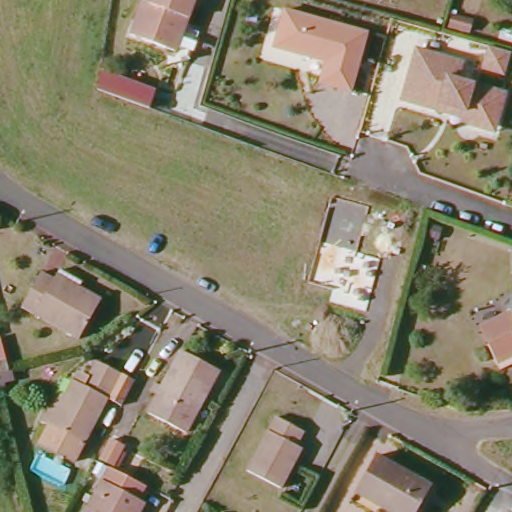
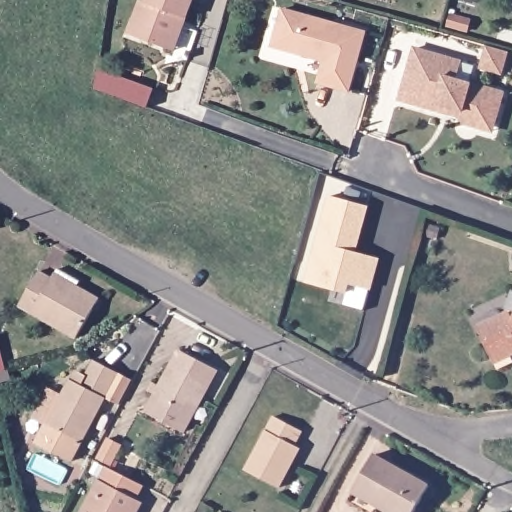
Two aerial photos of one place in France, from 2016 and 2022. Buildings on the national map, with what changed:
unchanged [(166,49),(130,36),(142,0),(146,0),(147,1),(148,0),(195,0),(188,19),(177,52),(166,49)]
unchanged [(273,46),(285,10),(365,34),(348,94),(318,83),(325,62),(273,46)]
unchanged [(476,124),(460,119),(461,115),(435,107),(400,96),(416,45),(462,60),(458,76),(504,90),(494,124),(492,130),(476,124)]
unchanged [(508,51),(502,72),(482,67),(487,45),(508,51)]
new [(105,74),(160,94),(153,110),(102,92),(105,74)]
new [(333,197),(370,207),(358,252),(382,259),(373,290),(352,284),(350,293),(310,282),(333,197)]
unchanged [(37,272),(72,293),(75,287),(98,302),(72,341),(16,304),(37,272)]
unchanged [(508,315),(512,316),(512,353),(508,355),(502,345),(495,343),(489,346),(481,326),(508,315)]
new [(0,379),(0,356),(0,342),(6,341),(9,354),(14,376),(0,379)]
unchanged [(146,415),(177,351),(213,368),(182,433),(146,415)]
unchanged [(123,377),(132,382),(118,408),(112,402),(108,401),(74,467),(35,446),(45,424),(40,422),(52,392),(61,395),(70,380),(77,372),(86,375),(95,361),(117,375),(123,377)]
unchanged [(274,421),(302,435),(286,469),(295,473),(285,495),(247,476),(274,421)]
unchanged [(104,462),(95,457),(105,438),(118,445),(107,465),(104,462)]
unchanged [(368,461),(421,489),(410,512),(379,512),(372,508),(375,502),(353,489),(368,461)]
unchanged [(139,483),(132,497),(135,499),(129,512),(79,512),(102,465),(139,483)]

